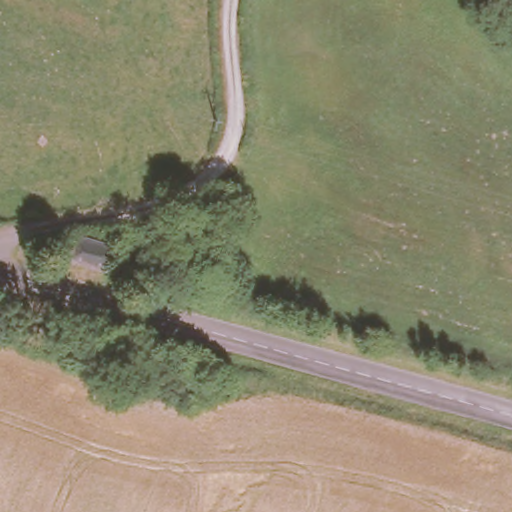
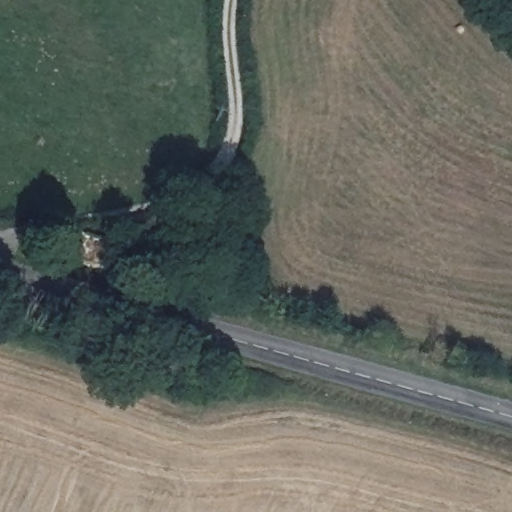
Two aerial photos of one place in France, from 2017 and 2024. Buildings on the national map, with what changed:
unchanged [(53,251),(61,230),(83,229),(137,247),(129,272),(53,251)]

